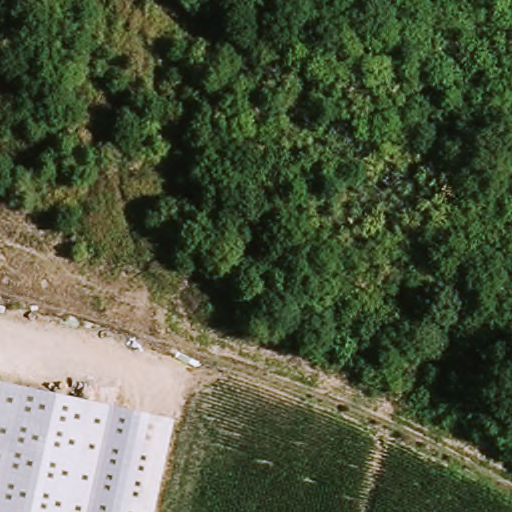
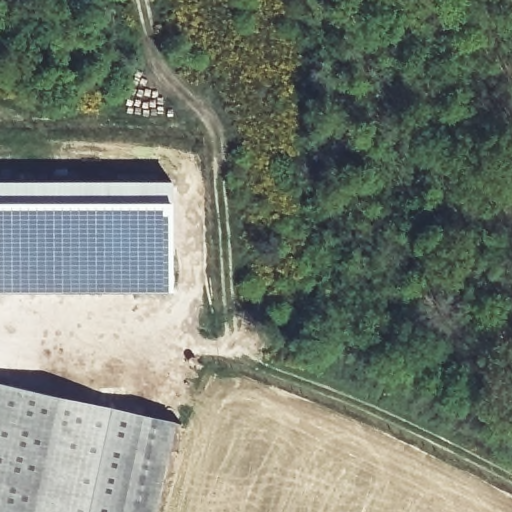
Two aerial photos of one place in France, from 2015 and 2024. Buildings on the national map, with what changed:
new [(175,180),(175,291),(0,292),(0,181),(175,180)]
unchanged [(0,512),(0,384),(116,411),(92,512),(0,512)]
unchanged [(157,512),(92,512),(116,411),(177,423),(157,512)]

